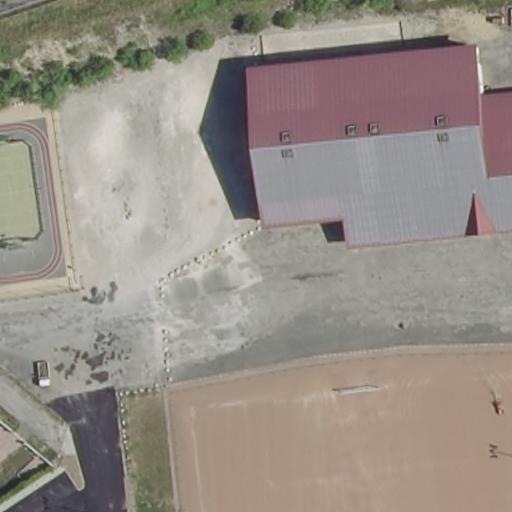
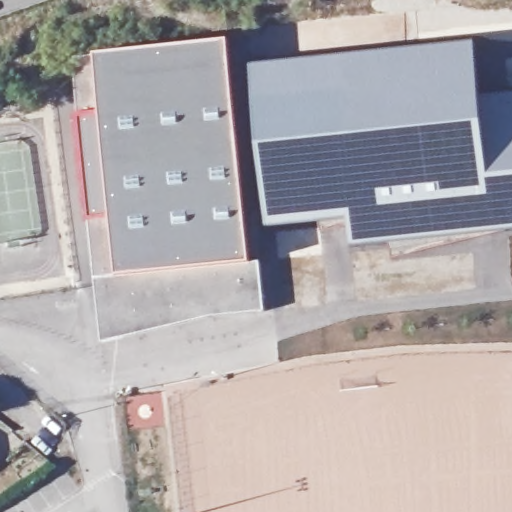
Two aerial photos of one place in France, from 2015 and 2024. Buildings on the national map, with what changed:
new [(68,57),(224,41),(247,263),(256,263),(261,312),(205,319),(95,346),(68,57)]
unchanged [(341,209),(262,217),(246,64),(471,42),(477,93),(512,89),(512,221),(344,237),(341,209)]

